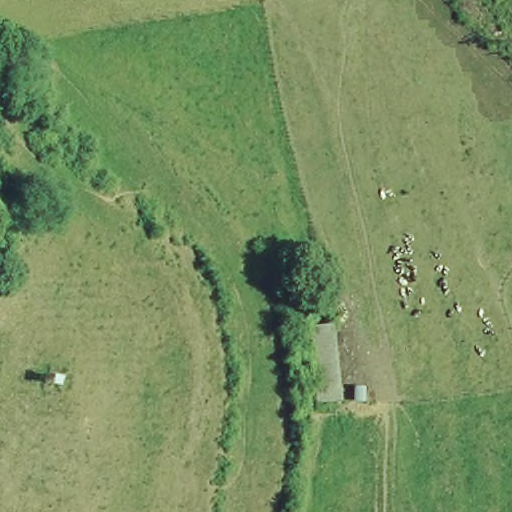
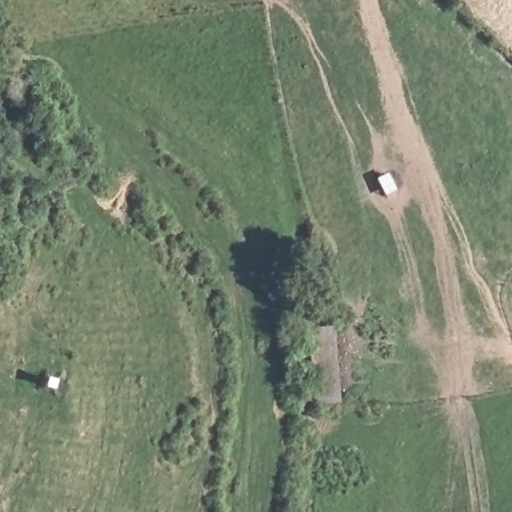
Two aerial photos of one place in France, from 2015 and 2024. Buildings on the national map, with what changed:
unchanged [(338,322),(343,405),(313,407),(306,329),(338,322)]

